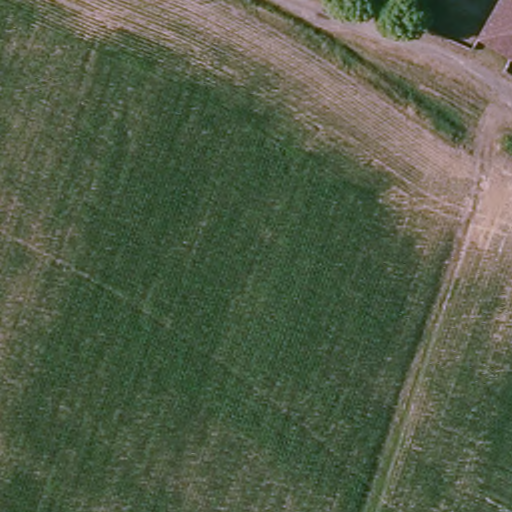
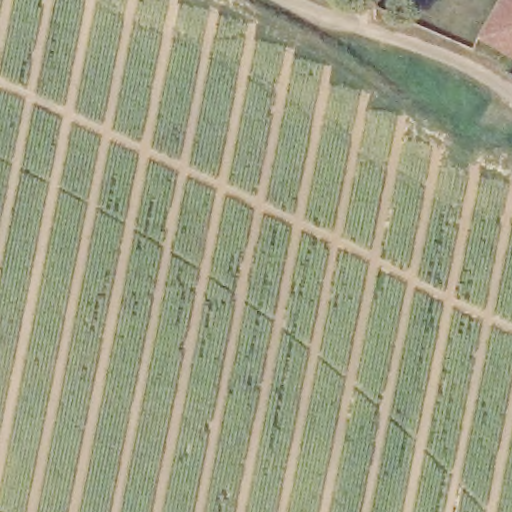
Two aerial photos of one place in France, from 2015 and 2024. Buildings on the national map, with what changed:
unchanged [(512,0),(512,52),(483,34),(501,0),(512,0)]

